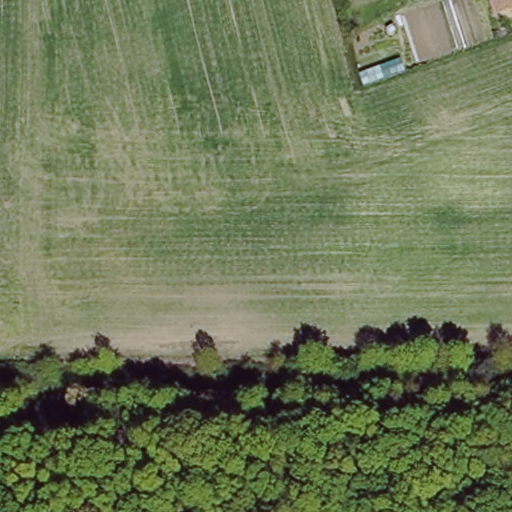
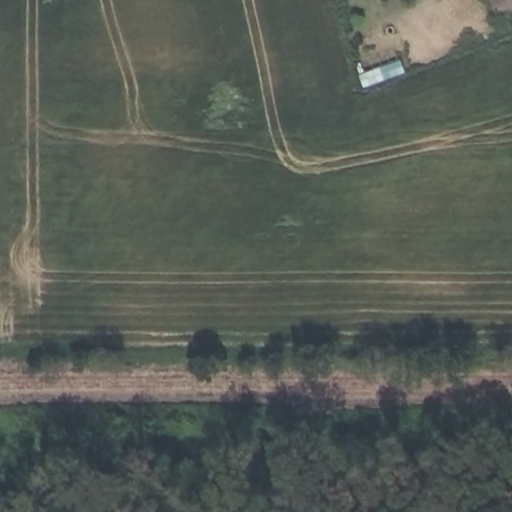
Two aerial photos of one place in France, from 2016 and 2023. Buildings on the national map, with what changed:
unchanged [(495,16),(489,0),(512,0),(512,8),(495,16)]

